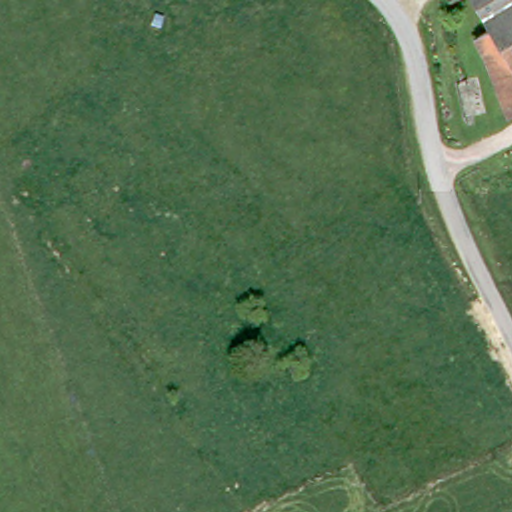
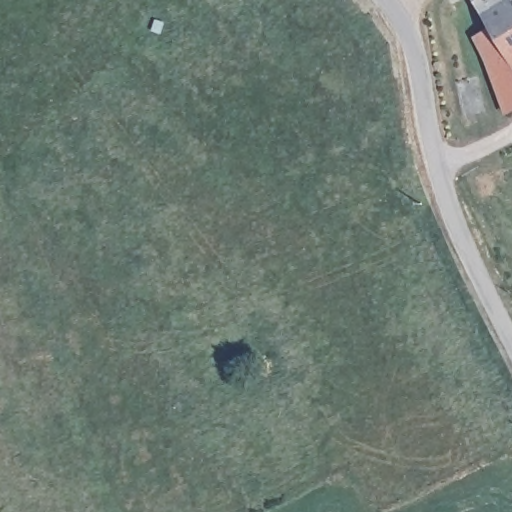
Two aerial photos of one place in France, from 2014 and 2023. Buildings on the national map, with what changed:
unchanged [(491,69),(479,41),(495,30),(476,0),(512,0),(512,59),(511,59),(491,69)]
unchanged [(511,59),(512,59),(512,113),(491,69),(511,59)]

